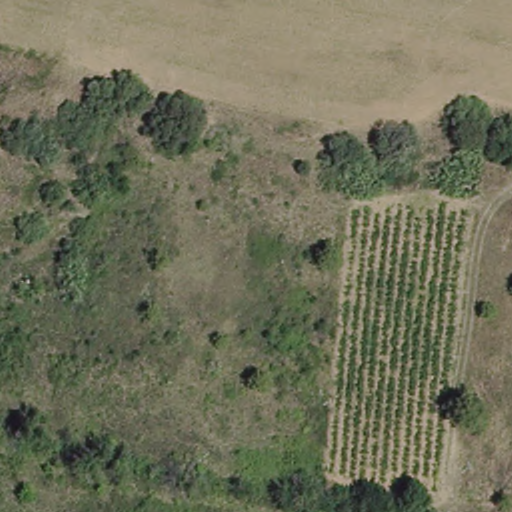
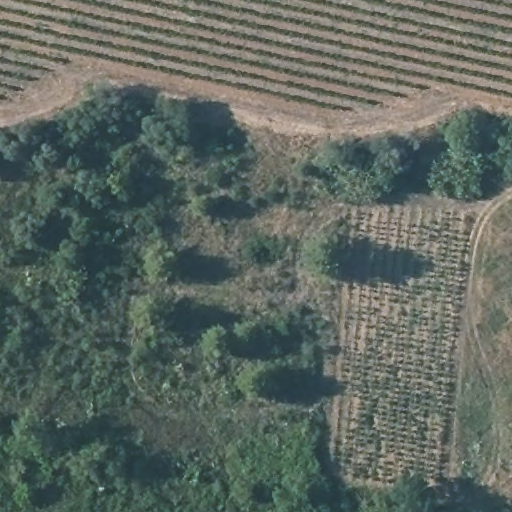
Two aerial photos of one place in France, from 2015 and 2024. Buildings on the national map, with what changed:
unchanged [(1,141),(0,141),(0,121),(1,141)]

